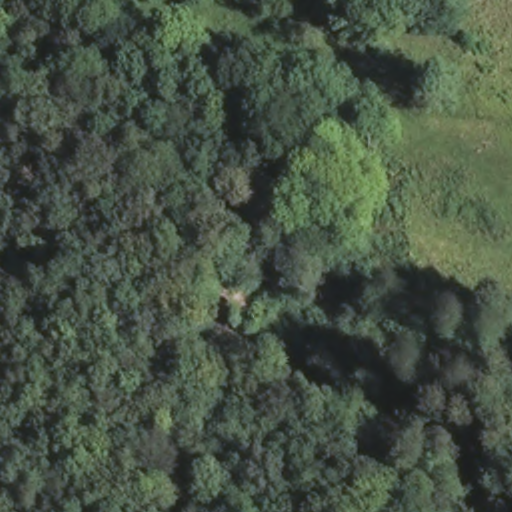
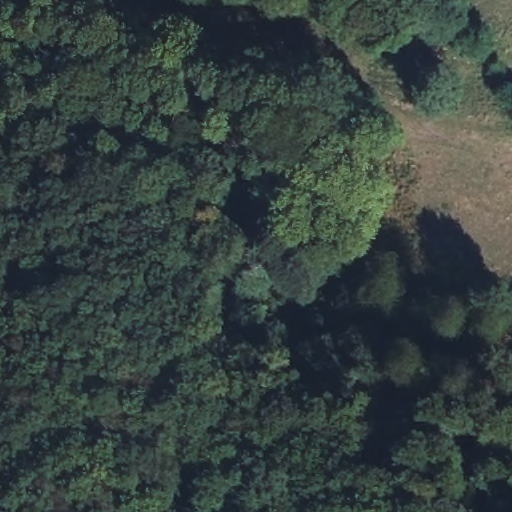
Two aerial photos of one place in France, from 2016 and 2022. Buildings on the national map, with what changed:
unchanged [(488,339),(512,345),(512,347),(507,359),(512,361),(512,385),(469,368),(488,339)]

